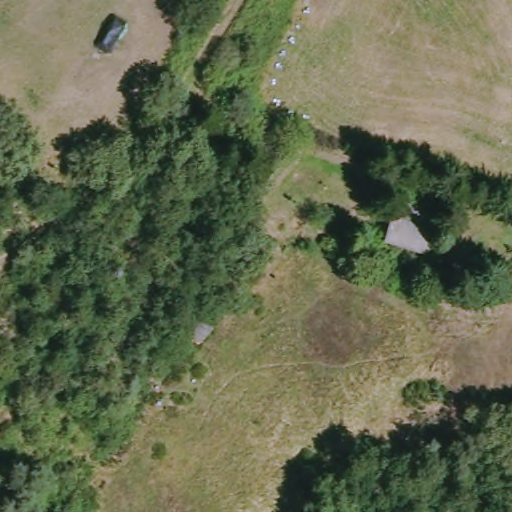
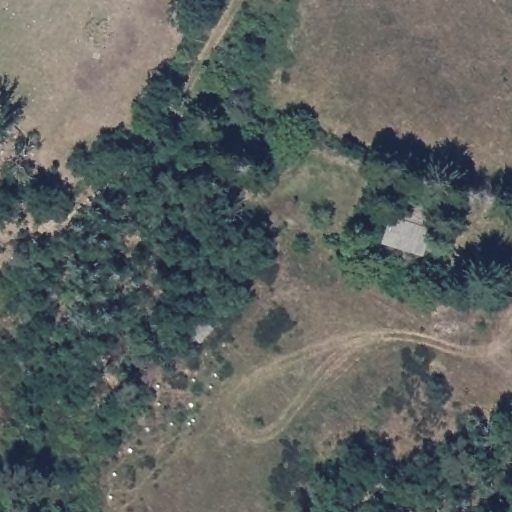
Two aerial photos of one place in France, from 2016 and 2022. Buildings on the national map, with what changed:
unchanged [(397,250),(389,247),(399,207),(438,217),(433,237),(441,239),(436,259),(429,257),(428,262),(396,255),(397,250)]

